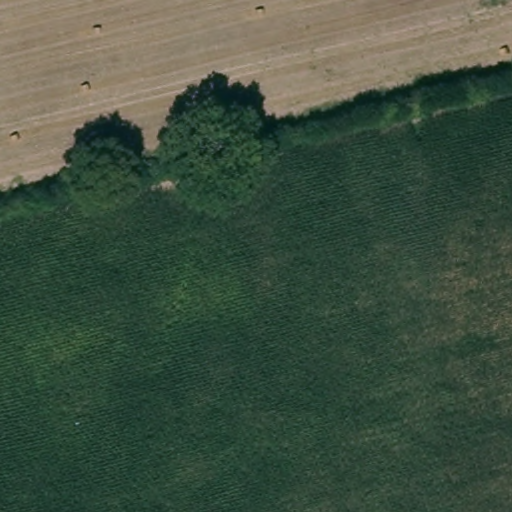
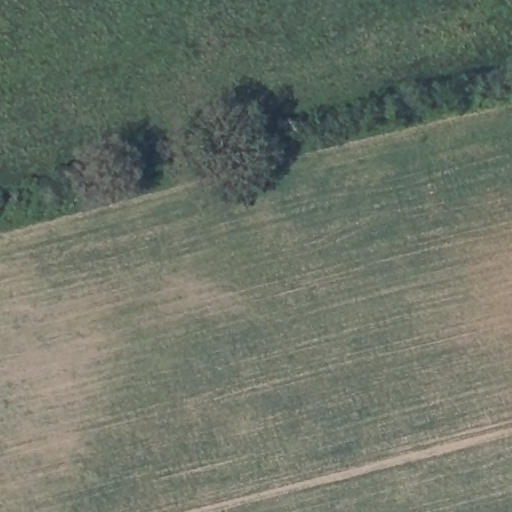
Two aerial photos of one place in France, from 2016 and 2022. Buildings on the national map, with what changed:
[]

